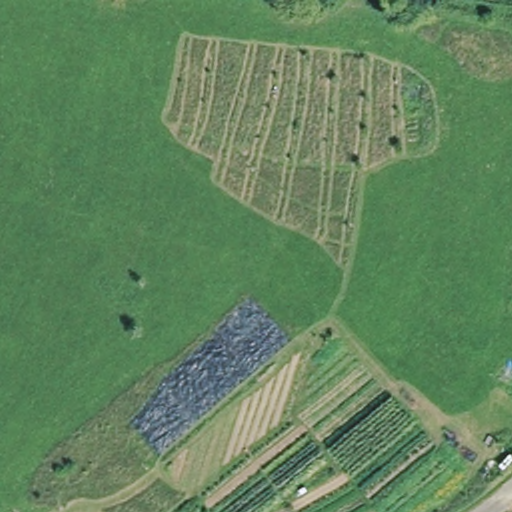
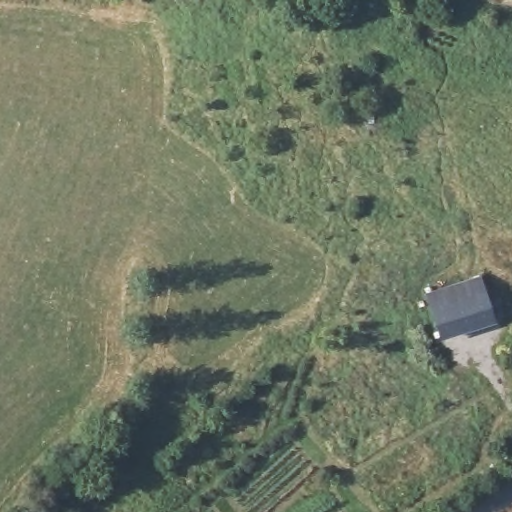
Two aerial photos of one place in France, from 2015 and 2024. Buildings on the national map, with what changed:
new [(478,275),(493,321),(444,337),(429,292),(478,275)]

